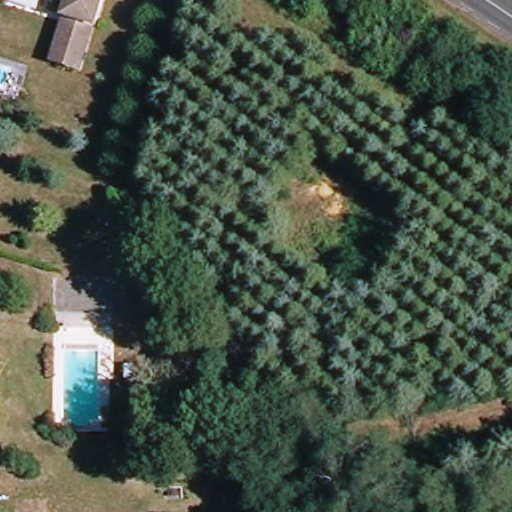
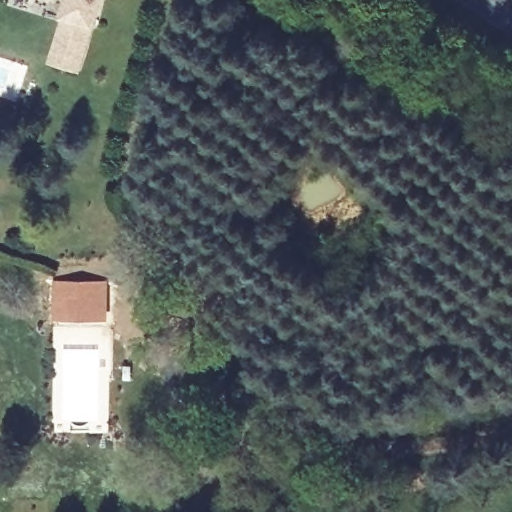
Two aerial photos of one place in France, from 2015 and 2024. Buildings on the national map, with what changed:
unchanged [(51,0),(54,0),(54,1),(51,0)]
unchanged [(105,0),(95,27),(91,26),(65,17),(70,0),(105,0)]
unchanged [(81,59),(77,70),(50,61),(55,46),(65,17),(91,26),(81,59)]
new [(51,279),(109,280),(108,322),(50,322),(51,279)]
demolished [(103,313),(59,313),(48,313),(47,283),(102,283),(103,313)]

